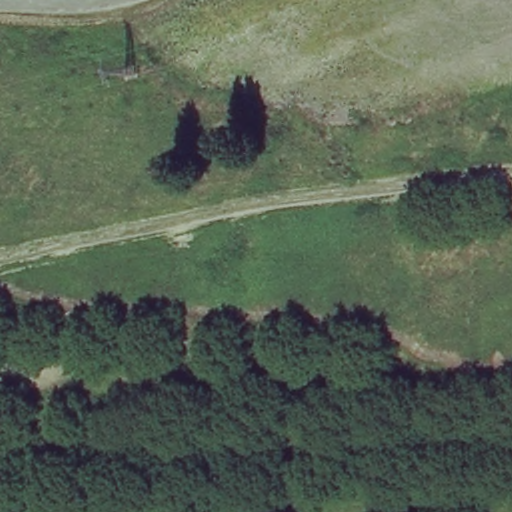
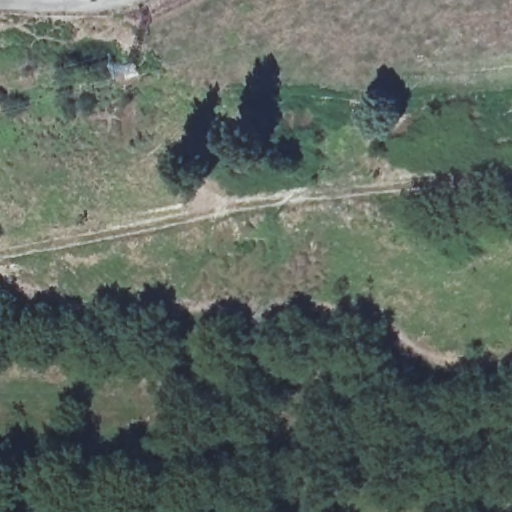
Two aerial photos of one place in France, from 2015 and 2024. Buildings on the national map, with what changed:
[]

